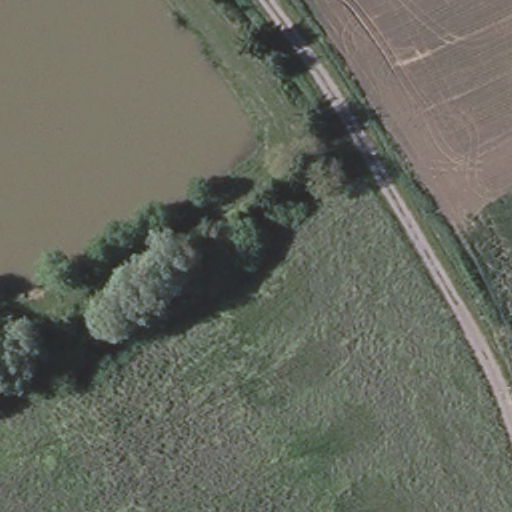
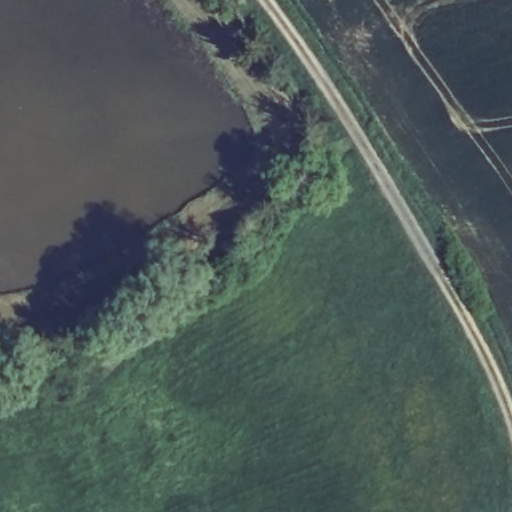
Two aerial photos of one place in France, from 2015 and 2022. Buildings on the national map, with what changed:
[]

